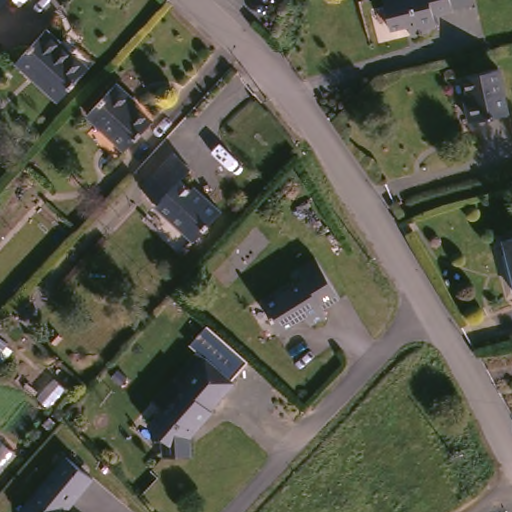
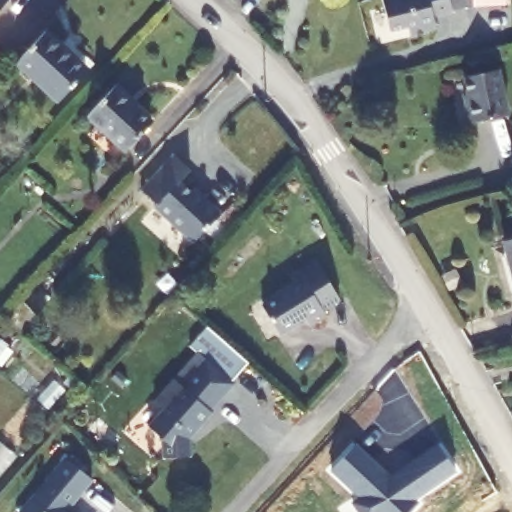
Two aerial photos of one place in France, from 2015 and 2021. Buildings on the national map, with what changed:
unchanged [(0,11),(0,0),(9,0),(0,11)]
unchanged [(459,3),(437,10),(444,25),(420,34),(415,21),(395,27),(387,0),(458,0),(459,3)]
unchanged [(64,37),(68,32),(96,57),(59,97),(17,59),(48,23),(64,37)]
unchanged [(500,60),(508,108),(469,114),(464,85),(468,84),(465,66),(500,60)]
unchanged [(120,76),(135,88),(131,92),(156,114),(131,143),(91,109),(120,76)]
unchanged [(177,145),(194,160),(184,172),(199,185),(203,182),(214,192),(226,202),(199,232),(160,198),(162,195),(146,181),(177,145)]
unchanged [(512,255),(508,240),(512,239),(512,255)]
unchanged [(310,277),(302,266),(322,252),(348,292),(330,305),(335,311),(316,325),(311,318),(288,334),(268,306),(310,277)]
unchanged [(213,405),(215,406),(201,422),(199,419),(192,427),(193,450),(167,452),(165,432),(152,420),(166,404),(158,397),(178,374),(202,347),(208,352),(237,377),(213,405)]
new [(394,481),(405,473),(402,469),(438,444),(456,470),(415,500),(420,503),(411,512),(360,512),(355,505),(362,499),(333,472),(356,446),(394,481)]
unchanged [(75,512),(27,512),(23,509),(70,452),(96,474),(69,507),(75,512)]

